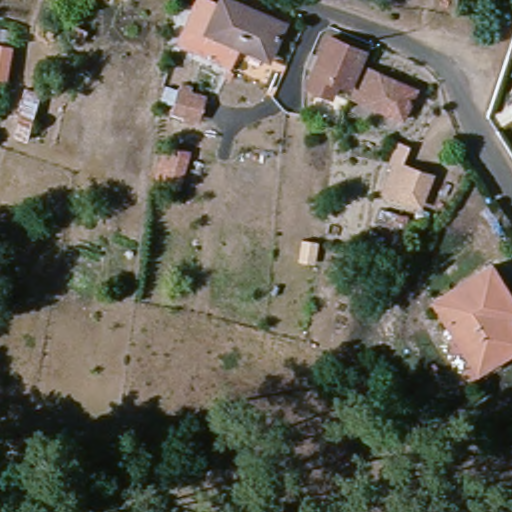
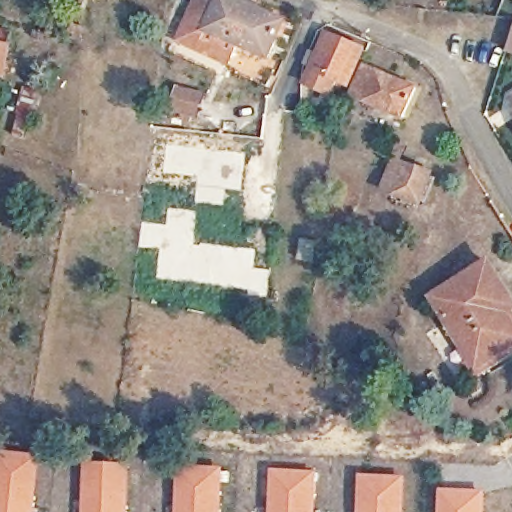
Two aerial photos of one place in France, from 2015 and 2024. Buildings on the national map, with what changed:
unchanged [(232,63),(180,40),(183,32),(198,0),(207,0),(218,5),(220,0),(231,0),(281,22),(266,57),(258,75),(232,63)]
unchanged [(79,31),(76,38),(65,33),(69,26),(79,31)]
unchanged [(512,59),(503,56),(512,30),(512,59)]
unchanged [(10,32),(4,77),(0,76),(0,31),(10,32)]
unchanged [(329,37),(361,53),(347,83),(336,77),(329,91),(312,82),(314,68),(329,37)]
unchanged [(414,89),(402,117),(350,96),(363,67),(414,89)]
unchanged [(204,96),(198,118),(193,116),(190,123),(182,120),(183,114),(172,111),(177,89),(204,96)]
unchanged [(18,112),(24,91),(36,95),(24,138),(14,135),(20,112),(18,112)]
unchanged [(378,165),(386,147),(398,152),(391,168),(391,170),(428,186),(417,213),(372,195),(383,167),(378,165)]
unchanged [(185,154),(175,185),(155,179),(163,148),(185,154)]
unchanged [(439,204),(428,198),(444,171),(454,177),(439,204)]
unchanged [(380,231),(378,241),(382,242),(381,247),(393,250),(392,259),(368,254),(372,230),(380,231)]
unchanged [(498,321),(512,344),(512,347),(467,374),(425,305),(481,269),(508,314),(498,321)]
new [(41,455),(34,512),(0,512),(0,449),(41,455)]
new [(85,459),(131,463),(128,512),(79,512),(80,493),(85,459)]
new [(177,464),(223,466),(222,512),(173,512),(173,508),(177,464)]
new [(317,471),(316,512),(267,512),(268,469),(317,471)]
new [(404,475),(403,512),(354,512),(355,473),(404,475)]
new [(486,512),(439,512),(440,490),(487,493),(486,512)]

